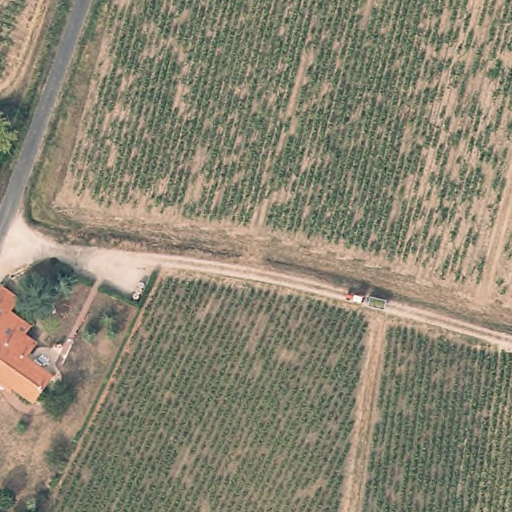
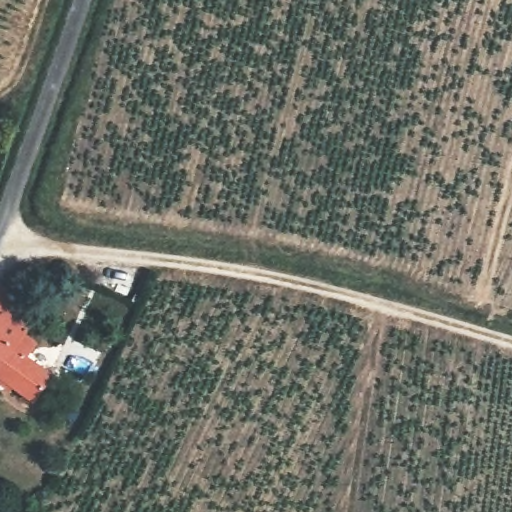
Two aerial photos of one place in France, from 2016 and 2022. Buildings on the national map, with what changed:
unchanged [(19,296),(10,308),(30,322),(25,331),(37,339),(26,353),(50,372),(30,399),(0,376),(0,292),(5,286),(19,296)]

